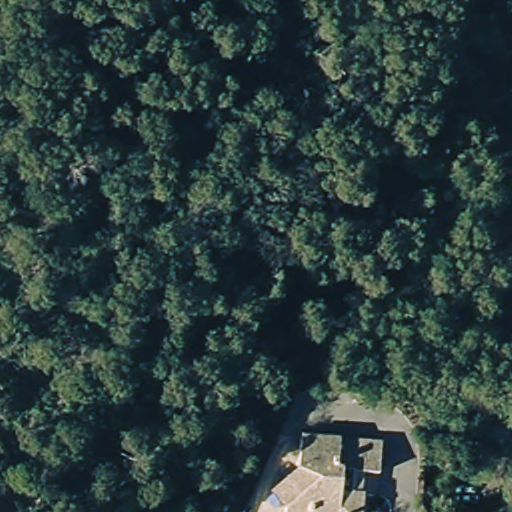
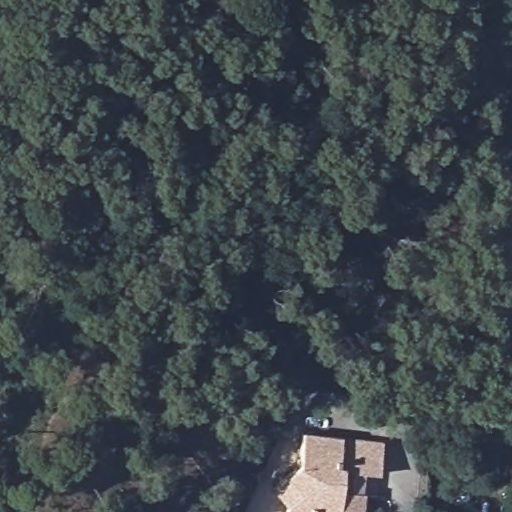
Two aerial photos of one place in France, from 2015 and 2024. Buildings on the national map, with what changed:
unchanged [(512,412),(512,429),(487,429),(487,411),(512,412)]
unchanged [(293,512),(294,509),(277,491),(300,463),(303,432),(384,441),(380,476),(365,474),(362,496),(364,496),(362,512),(293,512)]

